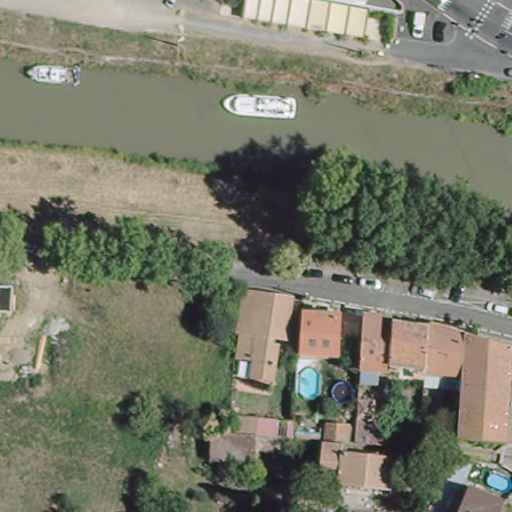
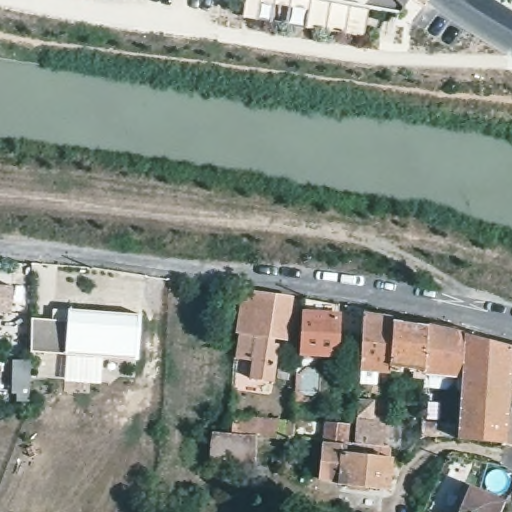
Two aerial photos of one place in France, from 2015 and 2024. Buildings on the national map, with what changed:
unchanged [(405,3),(405,7),(404,10),(398,9),(368,5),(333,0),(402,0),(405,3)]
unchanged [(291,331),(276,329),(275,336),(283,338),(277,374),(255,370),(258,352),(243,350),(248,323),(245,323),(252,284),(297,291),(291,331)]
unchanged [(12,313),(0,313),(0,286),(12,286),(12,313)]
unchanged [(341,318),(339,358),(301,355),(304,299),(323,302),(322,317),(341,318)]
new [(139,361),(65,354),(32,351),(33,318),(68,320),(68,309),(142,315),(139,361)]
unchanged [(355,319),(356,309),(363,310),(363,318),(394,323),(392,364),(392,375),(361,372),(363,320),(355,319)]
unchanged [(427,374),(418,374),(418,366),(392,364),(394,323),(428,328),(427,374)]
unchanged [(462,377),(427,374),(428,328),(465,336),(462,377)]
unchanged [(512,347),(512,446),(505,445),(458,441),(460,420),(462,377),(465,336),(512,347)]
unchanged [(325,448),(318,447),(295,445),(295,439),(318,441),(318,437),(327,437),(327,432),(357,434),(359,407),(371,408),(370,425),(389,425),(388,431),(402,432),(400,455),(393,455),(390,495),(345,491),(321,486),(325,448)]
unchanged [(217,465),(215,474),(196,472),(200,462),(190,462),(194,433),(211,435),(212,416),(240,419),(239,437),(237,466),(217,465)]
unchanged [(505,495),(498,512),(456,512),(469,481),(505,495)]

